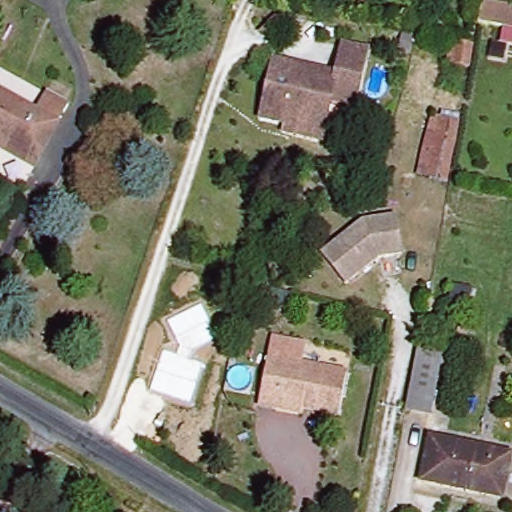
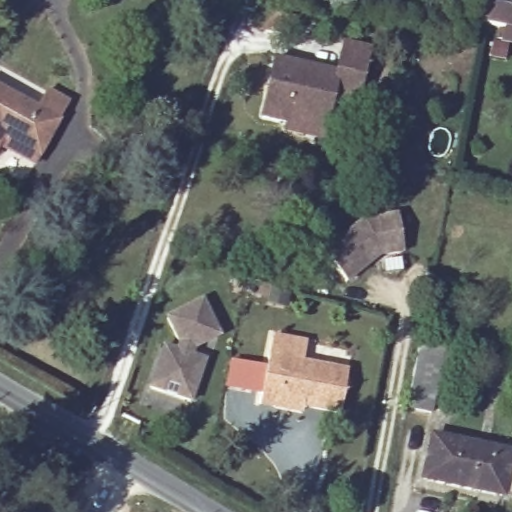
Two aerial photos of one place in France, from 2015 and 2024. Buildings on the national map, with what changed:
unchanged [(479,22),(482,3),(512,9),(512,29),(479,22)]
unchanged [(443,80),(449,44),(474,50),(468,81),(443,80)]
unchanged [(284,134),(286,126),(260,120),(274,64),(336,79),(344,49),(369,55),(355,110),(330,104),(324,129),(321,143),(284,134)]
unchanged [(47,91),(67,102),(39,153),(3,134),(0,139),(0,87),(38,109),(47,91)]
unchanged [(444,192),(424,186),(439,131),(427,128),(431,114),(460,120),(451,167),(444,192)]
unchanged [(363,223),(397,218),(404,255),(379,260),(347,286),(323,257),(363,223)]
new [(164,346),(177,350),(179,342),(167,316),(202,300),(219,335),(194,346),(191,355),(204,360),(190,400),(150,386),(164,346)]
unchanged [(339,411),(278,400),(273,403),(260,401),(273,337),(304,343),(300,361),(347,370),(339,411)]
unchanged [(429,411),(406,407),(418,342),(441,347),(429,411)]
unchanged [(423,477),(432,435),(511,452),(502,495),(423,477)]

